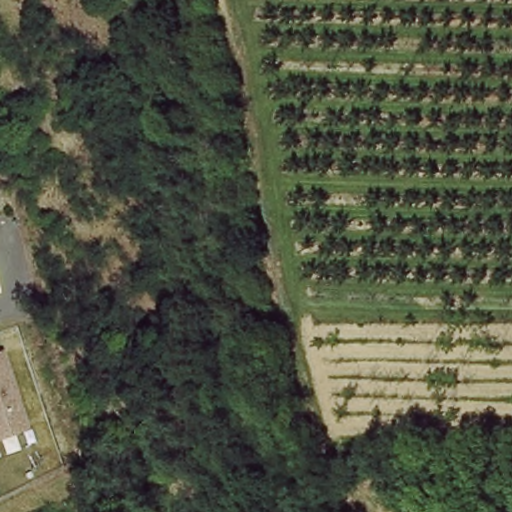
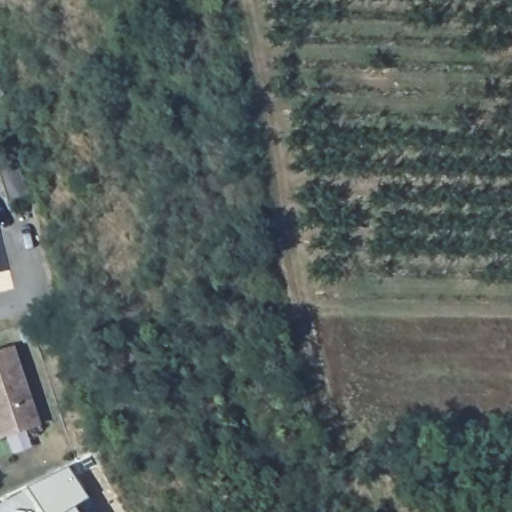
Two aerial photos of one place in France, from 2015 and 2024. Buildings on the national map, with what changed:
unchanged [(6,92),(0,96),(0,82),(6,92)]
unchanged [(16,346),(43,426),(0,441),(0,351),(16,346)]
new [(68,466),(88,498),(74,507),(66,512),(40,512),(24,487),(68,466)]
new [(74,507),(77,512),(66,512),(74,507)]

